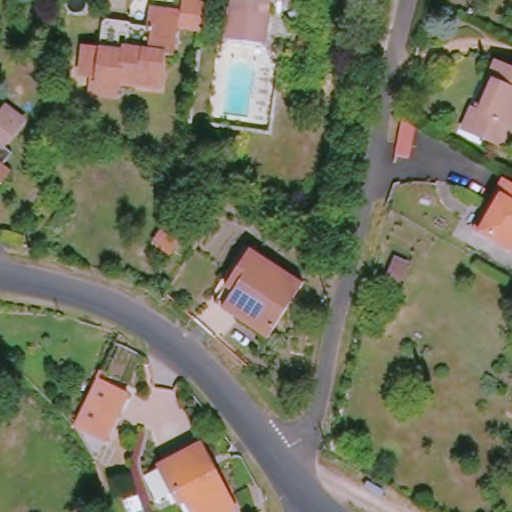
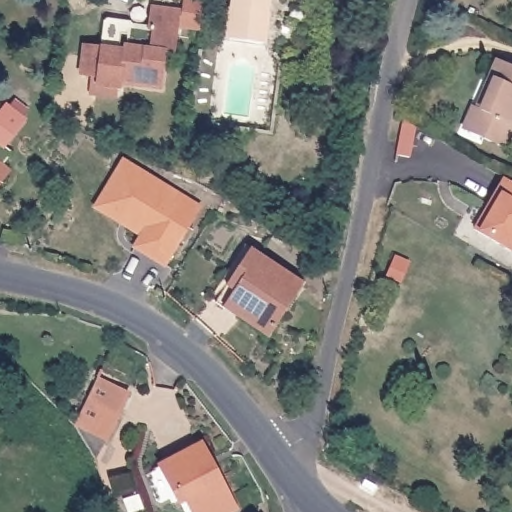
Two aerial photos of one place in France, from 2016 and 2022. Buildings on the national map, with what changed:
unchanged [(275,16),(269,52),(232,47),(237,11),(238,0),(277,0),(275,16)]
unchanged [(155,9),(176,12),(174,28),(178,28),(175,55),(165,55),(159,88),(123,83),(123,88),(100,86),(101,76),(84,75),(88,47),(107,49),(109,26),(131,28),(152,30),(155,9)]
unchanged [(471,130),(479,112),(484,114),(497,86),(494,84),(503,65),(512,69),(512,142),(507,153),(494,147),(496,141),(471,130)]
unchanged [(0,190),(0,123),(9,111),(27,125),(8,150),(17,158),(4,173),(10,178),(0,190)]
unchanged [(409,123),(401,156),(388,152),(392,138),(398,116),(409,123)]
new [(139,236),(94,208),(123,158),(203,207),(164,268),(133,248),(139,236)]
unchanged [(469,230),(477,216),(499,178),(512,185),(512,254),(506,251),(469,230)]
unchanged [(280,346),(219,306),(253,253),(314,293),(280,346)]
unchanged [(135,397),(113,443),(80,427),(104,381),(135,397)]
unchanged [(176,495),(161,466),(202,446),(234,510),(231,512),(193,512),(182,491),(176,495)]

